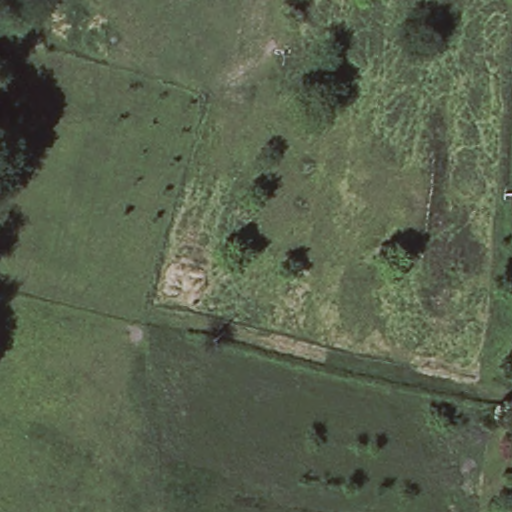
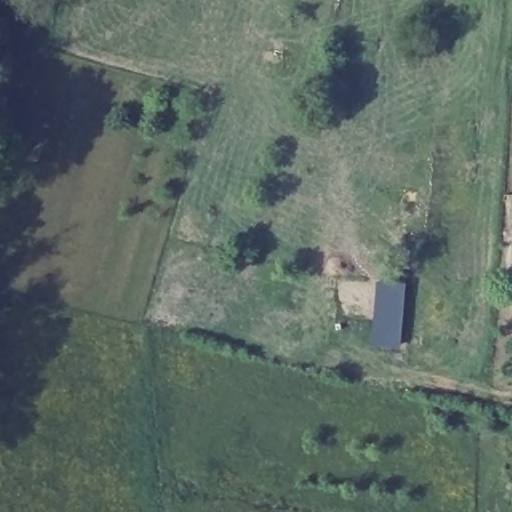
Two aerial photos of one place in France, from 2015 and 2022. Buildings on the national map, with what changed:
new [(377,278),(406,280),(402,347),(374,345),(377,278)]

